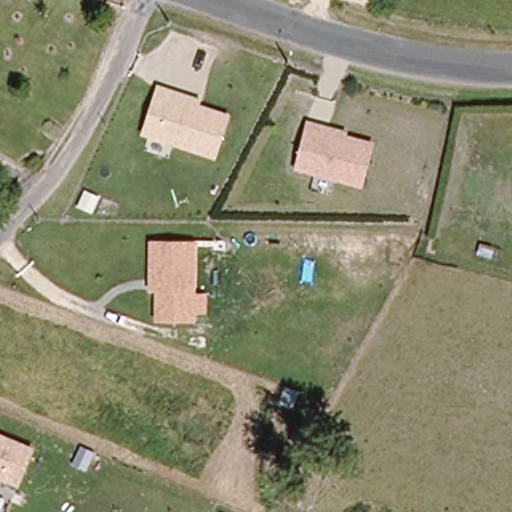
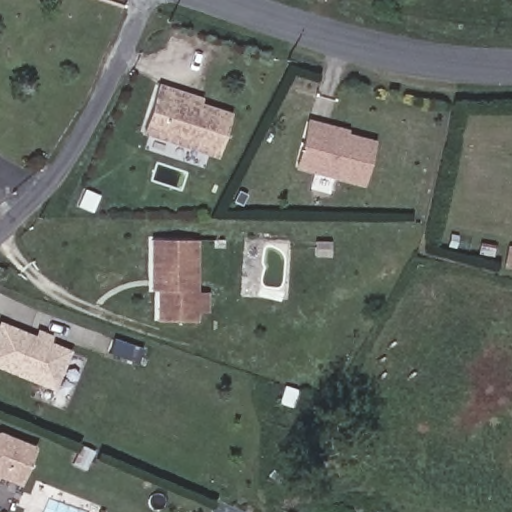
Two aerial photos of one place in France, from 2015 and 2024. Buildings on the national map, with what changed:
unchanged [(143,134),(160,86),(233,113),(216,157),(143,134)]
unchanged [(298,169),(309,121),(376,140),(364,187),(298,169)]
unchanged [(197,293),(207,292),(207,314),(196,315),(196,320),(157,321),(157,291),(150,291),(147,241),(196,241),(197,293)]
new [(0,321),(35,335),(37,330),(53,336),(51,342),(72,350),(54,392),(0,368),(0,321)]
unchanged [(0,479),(0,433),(34,445),(19,485),(0,479)]

